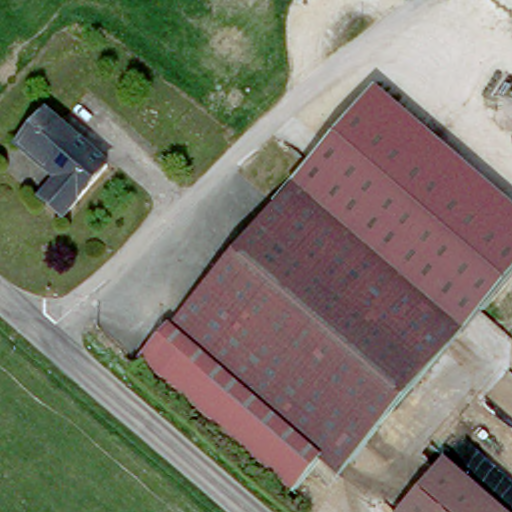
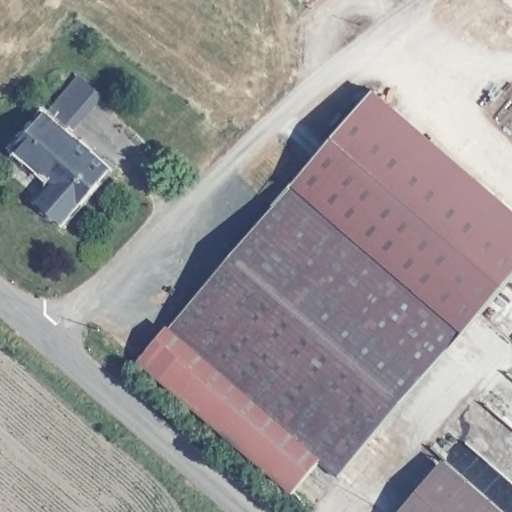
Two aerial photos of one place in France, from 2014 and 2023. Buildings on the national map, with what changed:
new [(79,76),(103,99),(73,134),(48,113),(79,76)]
unchanged [(293,184),(310,163),(377,87),(512,203),(512,272),(479,310),(463,328),(293,184)]
unchanged [(57,178),(20,144),(48,113),(106,165),(62,215),(42,194),(57,178)]
unchanged [(340,471),(320,457),(292,489),(142,357),(293,184),(463,328),(340,471)]
unchanged [(447,459),(508,512),(402,512),(447,459)]

